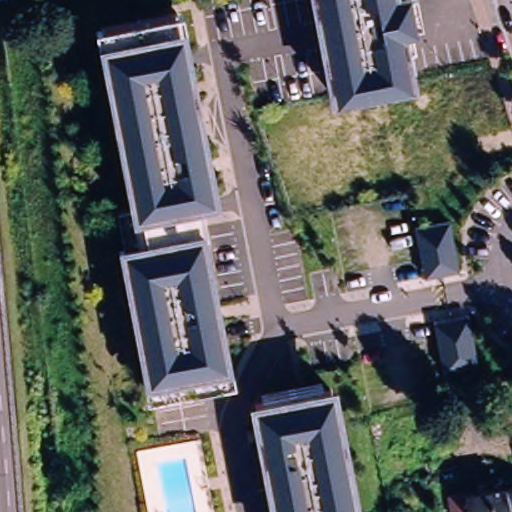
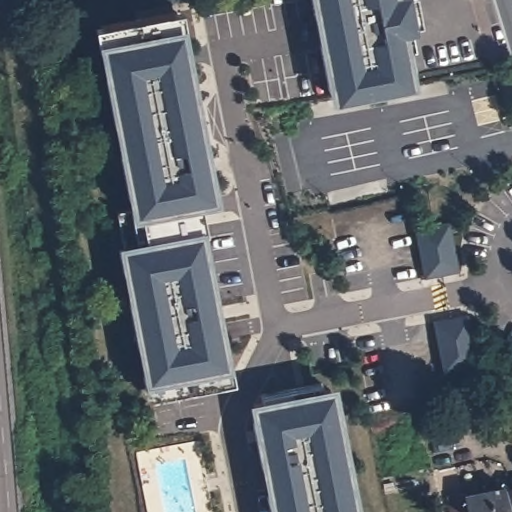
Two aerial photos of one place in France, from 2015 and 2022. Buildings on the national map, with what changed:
unchanged [(415,25),(416,29),(412,30),(415,45),(408,46),(415,84),(330,99),(311,0),(419,0),(423,23),(415,25)]
unchanged [(220,201),(201,204),(206,226),(201,228),(231,365),(234,381),(148,397),(145,383),(118,242),(125,241),(119,211),(131,209),(97,39),(95,26),(181,10),(184,24),(220,201)]
unchanged [(414,86),(438,82),(441,99),(416,103),(414,86)]
unchanged [(459,271),(425,276),(416,227),(450,221),(459,271)]
unchanged [(478,366),(443,372),(434,319),(468,313),(478,366)]
unchanged [(262,397),(261,393),(321,381),(322,386),(336,383),(360,512),(270,512),(247,399),(262,397)]
unchanged [(463,405),(466,416),(460,417),(462,423),(449,426),(448,420),(436,423),(435,413),(463,405)]
unchanged [(423,502),(484,490),(485,495),(493,494),(491,486),(510,483),(512,491),(512,512),(425,512),(423,502)]

